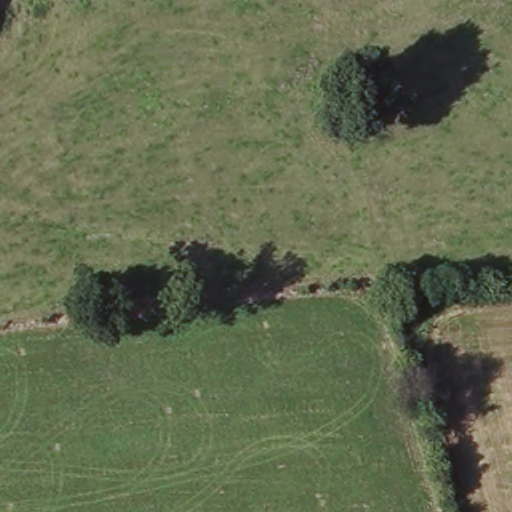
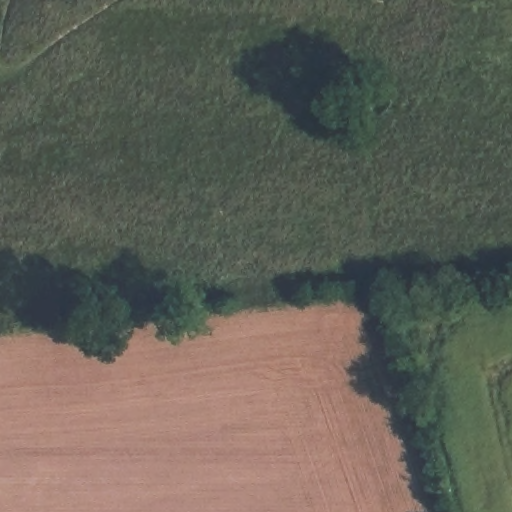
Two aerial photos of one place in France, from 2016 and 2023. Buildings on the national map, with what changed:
unchanged [(0,33),(0,6),(21,8),(18,35),(0,33)]

